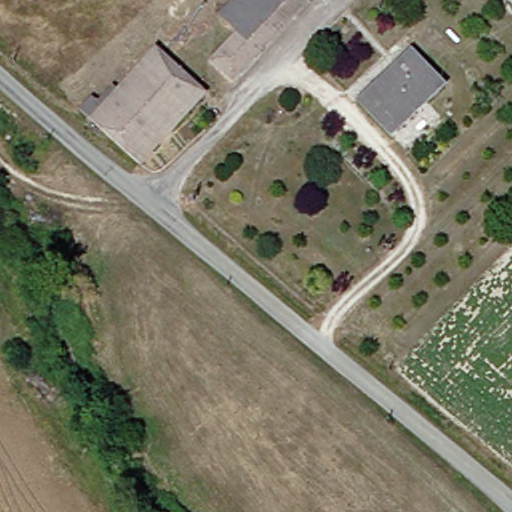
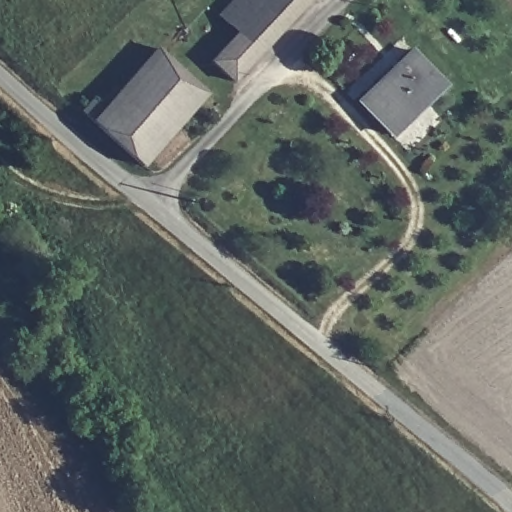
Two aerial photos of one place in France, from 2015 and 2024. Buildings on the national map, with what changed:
unchanged [(244,79),(222,60),(251,28),(232,10),(242,0),(321,0),(244,79)]
unchanged [(217,94),(194,117),(147,77),(171,51),(217,94)]
unchanged [(400,134),(370,101),(421,51),(452,85),(400,134)]
unchanged [(194,117),(151,165),(102,127),(95,121),(108,106),(116,110),(147,77),(194,117)]

